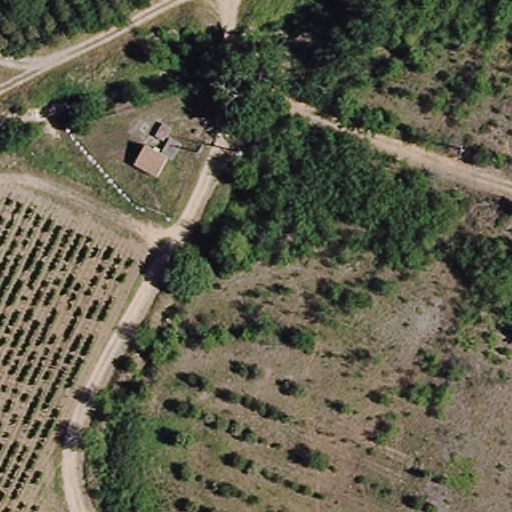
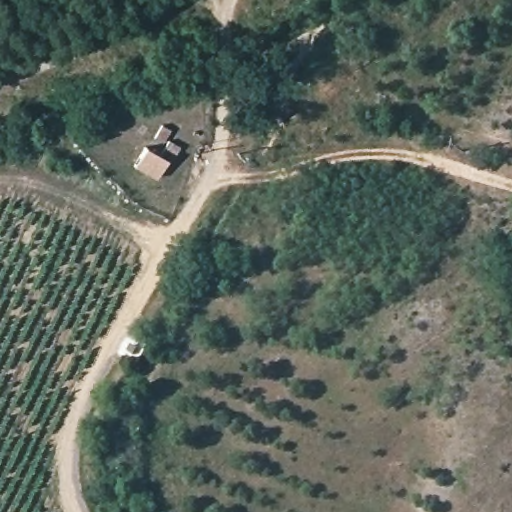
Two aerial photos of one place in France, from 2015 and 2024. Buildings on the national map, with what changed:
unchanged [(170,163),(156,178),(136,164),(145,147),(170,163)]

